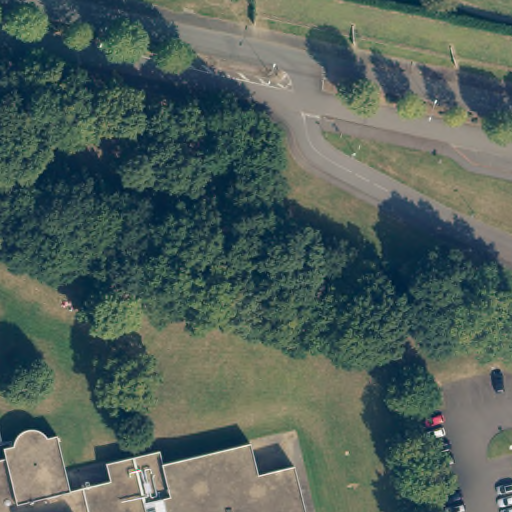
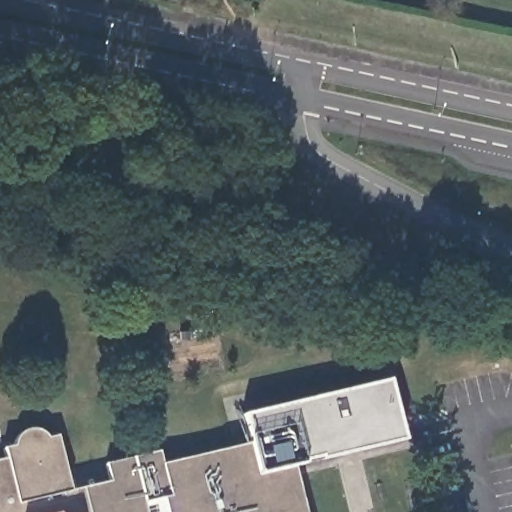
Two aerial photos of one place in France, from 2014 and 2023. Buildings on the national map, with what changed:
new [(403,441),(319,461),(318,458),(301,463),(292,469),(290,461),(253,468),(245,439),(242,415),(389,379),(403,441)]
unchanged [(0,512),(0,454),(1,454),(0,447),(0,443),(9,441),(11,435),(15,430),(19,427),(24,424),(31,425),(38,428),(44,433),(53,431),(65,485),(105,476),(101,458),(155,446),(158,459),(245,439),(253,468),(290,461),(302,512),(0,512)]

